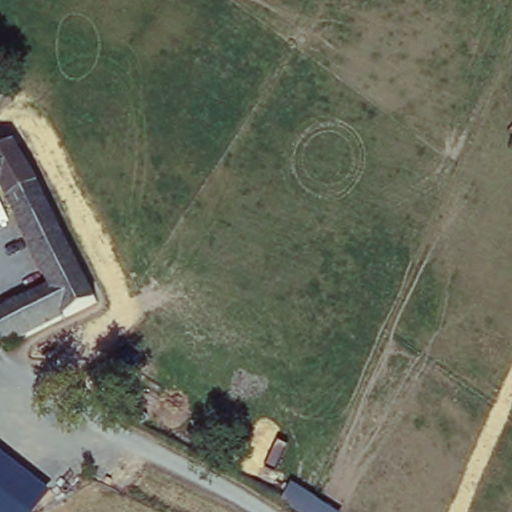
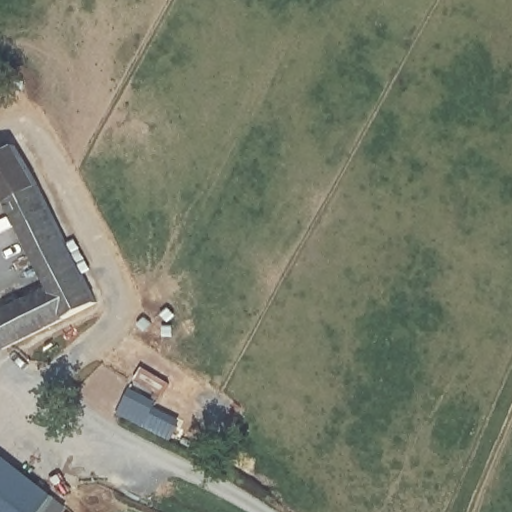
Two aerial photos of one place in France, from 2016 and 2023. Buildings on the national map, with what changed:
unchanged [(43,183),(100,303),(6,344),(0,341),(0,304),(45,283),(0,195),(0,143),(11,136),(43,183)]
new [(158,401),(155,408),(179,421),(170,440),(116,413),(128,386),(158,401)]
unchanged [(69,508),(66,512),(0,512),(0,454),(52,493),(69,508)]

